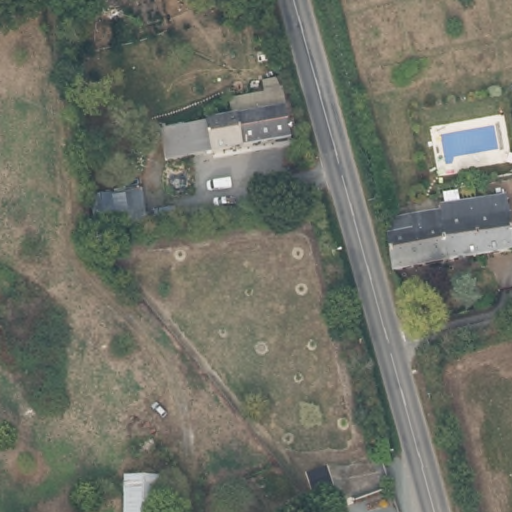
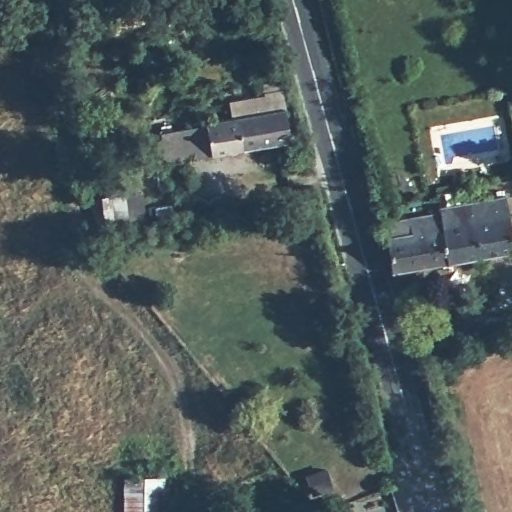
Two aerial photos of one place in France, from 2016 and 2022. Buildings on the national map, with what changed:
unchanged [(219,122),(273,113),(270,94),(285,92),(293,143),(213,157),(212,155),(195,157),(189,127),(209,124),(219,122)]
unchanged [(384,244),(380,229),(408,225),(439,219),(437,215),(436,211),(504,199),(505,202),(512,238),(512,257),(394,277),(384,244)]
unchanged [(161,482),(160,512),(118,512),(119,481),(161,482)]

